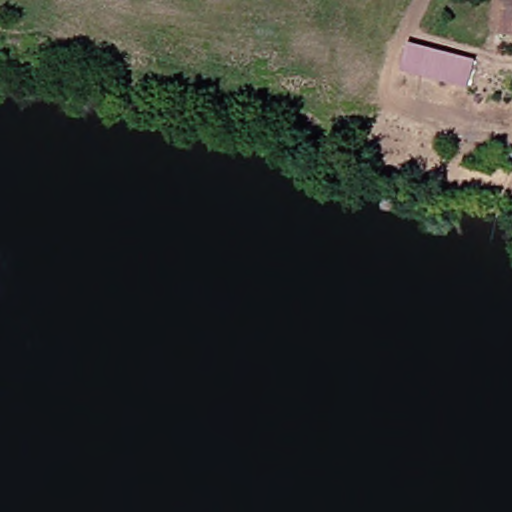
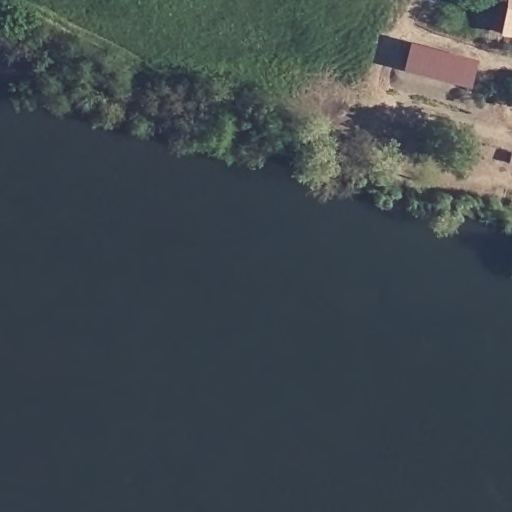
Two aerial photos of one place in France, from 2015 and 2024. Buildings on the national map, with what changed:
unchanged [(510,0),(512,0),(512,33),(505,32),(510,0)]
unchanged [(503,68),(495,98),(466,92),(406,76),(413,48),(475,62),(503,68)]

